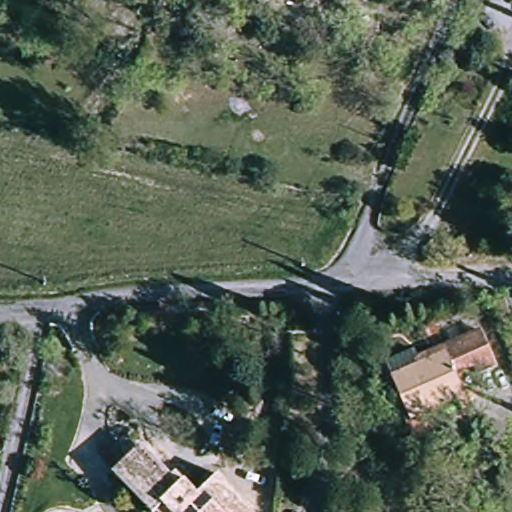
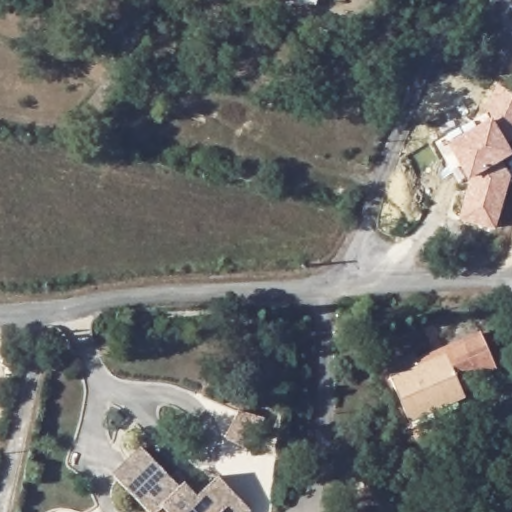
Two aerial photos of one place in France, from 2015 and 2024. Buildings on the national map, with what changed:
unchanged [(264,0),(290,0),(290,1),(265,2),(264,0)]
unchanged [(290,0),(342,0),(290,1),(290,0)]
new [(494,230),(457,219),(468,180),(461,166),(453,174),(435,142),(483,113),(496,84),(512,92),(512,140),(507,144),(512,153),(512,154),(501,160),(511,177),(494,230)]
unchanged [(478,332),(495,373),(453,389),(460,406),(452,408),(427,351),(478,332)]
unchanged [(410,426),(384,361),(425,346),(427,351),(452,408),(410,426)]
unchanged [(115,472),(144,445),(179,483),(184,478),(199,494),(203,490),(223,512),(150,512),(115,472)]
unchanged [(331,502),(359,504),(359,512),(331,512),(331,502)]

